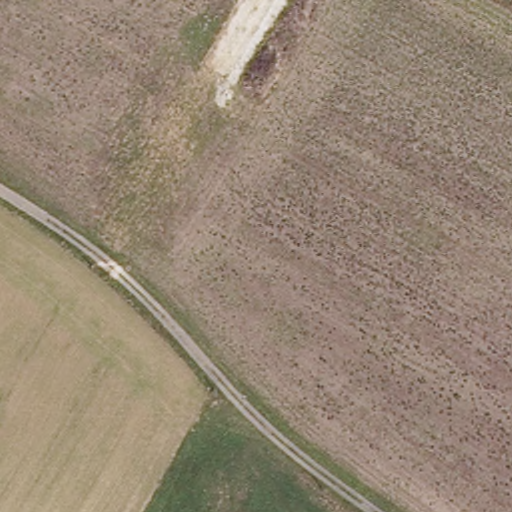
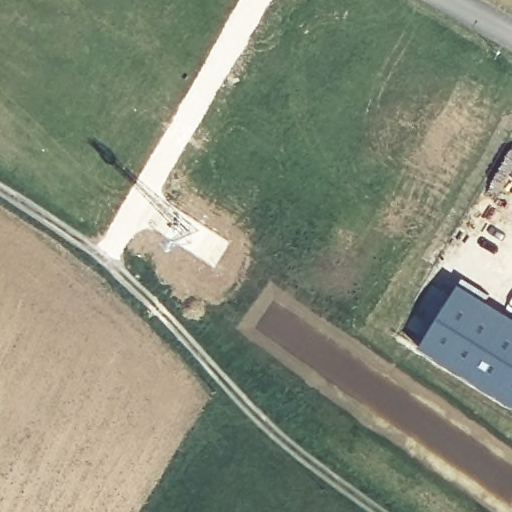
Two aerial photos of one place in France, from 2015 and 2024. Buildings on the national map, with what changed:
new [(512,407),(414,349),(457,284),(512,319),(512,407)]

